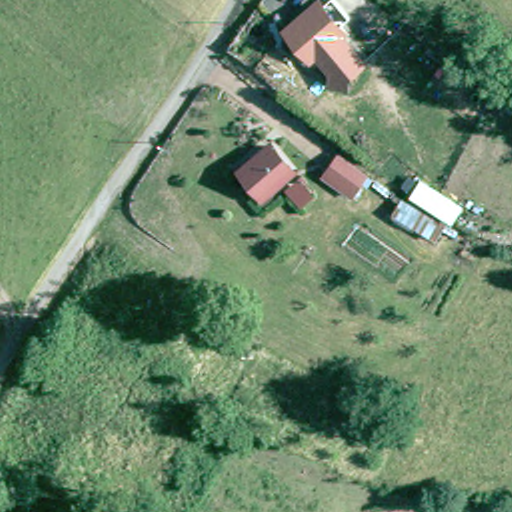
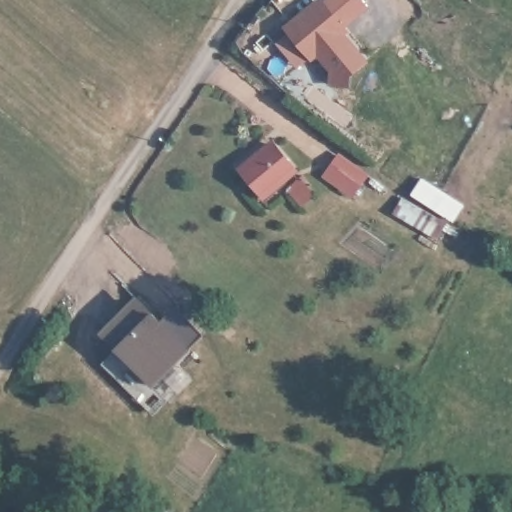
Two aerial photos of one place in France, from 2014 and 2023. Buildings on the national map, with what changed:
unchanged [(369,63),(342,85),(317,54),(305,61),(283,26),(316,0),(322,0),(342,28),(369,63)]
unchanged [(244,175),(252,166),(277,143),(298,167),(276,188),(267,196),(244,175)]
unchanged [(372,184),(355,198),(326,175),(342,159),(372,184)]
new [(153,310),(191,349),(154,386),(116,348),(100,331),(136,295),(153,310)]

